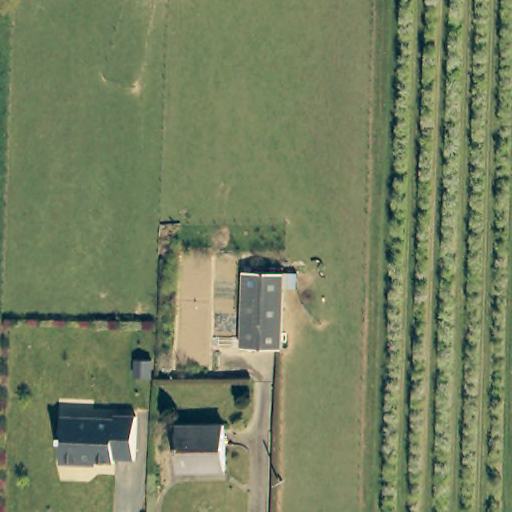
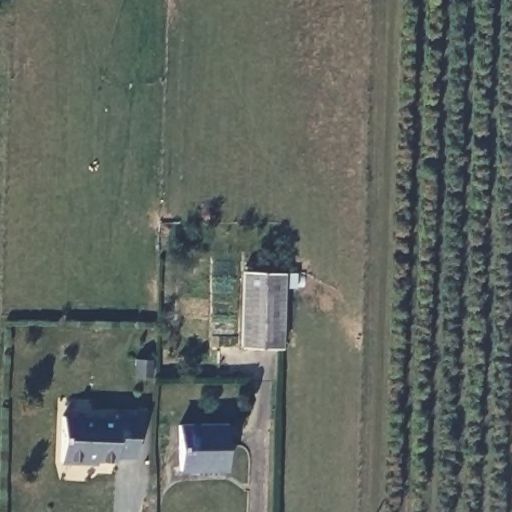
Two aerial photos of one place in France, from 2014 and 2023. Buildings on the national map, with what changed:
unchanged [(245,271),(284,271),(282,347),(243,346),(245,271)]
unchanged [(112,416),(112,412),(133,413),(133,457),(113,456),(113,459),(103,459),(104,415),(112,416)]
unchanged [(58,462),(59,414),(104,415),(103,459),(86,459),(83,462),(58,462)]
unchanged [(181,470),(180,425),(228,424),(228,469),(181,470)]

